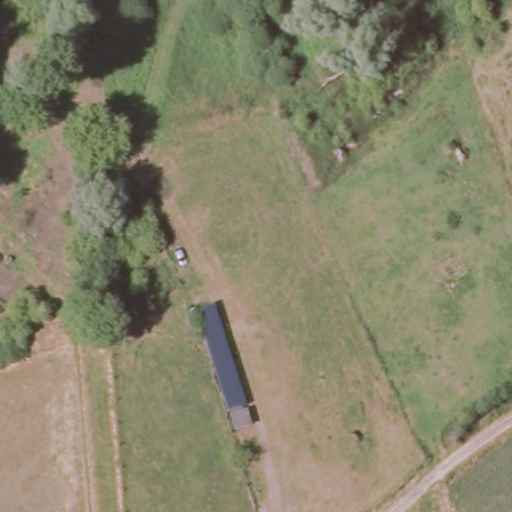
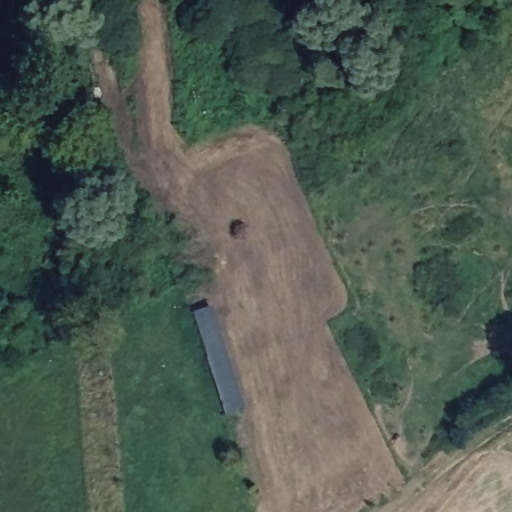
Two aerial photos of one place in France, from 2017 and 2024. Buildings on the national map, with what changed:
unchanged [(212,307),(245,409),(230,413),(197,312),(212,307)]

